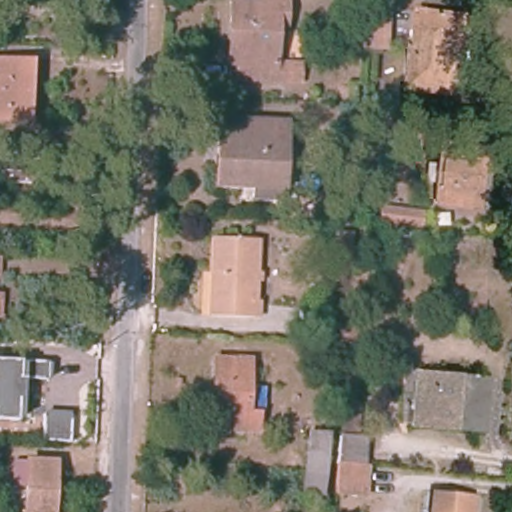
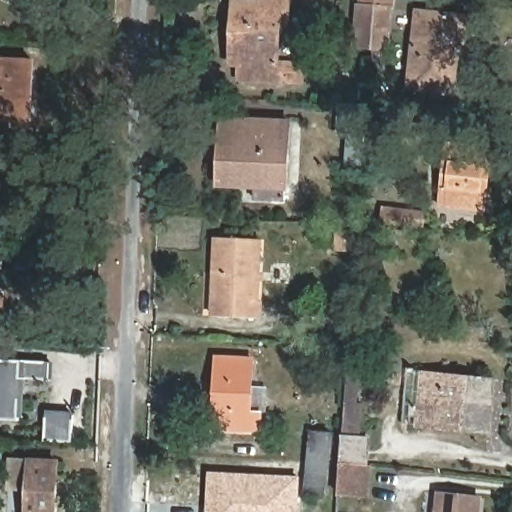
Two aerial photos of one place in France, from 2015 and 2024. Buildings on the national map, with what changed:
unchanged [(229,24),(230,0),(286,2),(285,25),(275,25),(274,62),(282,63),(282,80),(236,78),(236,62),(227,60),(229,24)]
unchanged [(463,16),(459,50),(453,49),(447,92),(403,88),(413,11),(463,16)]
unchanged [(385,50),(349,47),(354,18),(387,21),(385,50)]
unchanged [(0,122),(0,60),(29,61),(28,84),(27,123),(17,122),(0,122)]
unchanged [(252,200),(252,185),(230,184),(216,183),(218,136),(219,118),(285,120),(283,186),(282,201),(252,200)]
unchanged [(441,185),(448,185),(449,164),(444,164),(445,143),(492,146),(490,167),(484,167),(482,189),(488,189),(487,210),(439,205),(441,185)]
unchanged [(357,233),(354,252),(334,250),(335,231),(357,233)]
unchanged [(256,320),(214,319),(217,241),(260,243),(256,320)]
unchanged [(0,278),(0,256),(4,256),(4,278),(0,278)]
unchanged [(0,307),(0,297),(1,297),(0,307)]
unchanged [(221,360),(256,363),(253,412),(265,412),(263,433),(218,431),(221,360)]
unchanged [(28,380),(26,421),(0,420),(0,361),(56,363),(55,381),(28,380)]
unchanged [(467,432),(421,426),(428,372),(495,381),(492,410),(489,435),(467,432)]
unchanged [(51,417),(77,418),(76,445),(50,444),(51,417)]
unchanged [(305,426),(330,430),(324,497),(301,496),(305,426)]
unchanged [(338,491),(340,460),(342,436),(374,438),(372,463),(369,495),(338,491)]
unchanged [(55,463),(52,505),(52,512),(25,512),(28,462),(55,463)]
new [(299,512),(205,512),(207,471),(300,476),(299,512)]
unchanged [(478,512),(438,512),(440,496),(479,501),(478,512)]

